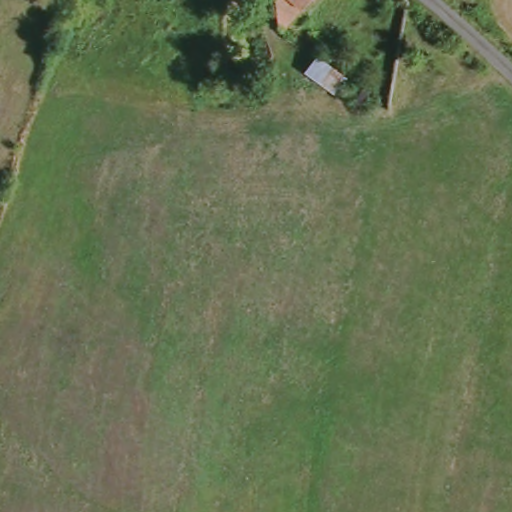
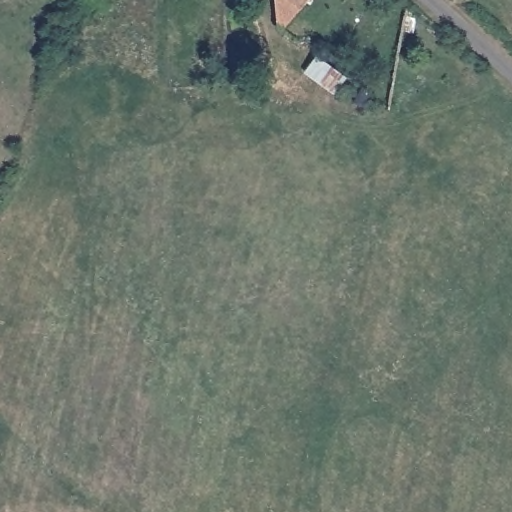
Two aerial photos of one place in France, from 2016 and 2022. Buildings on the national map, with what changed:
unchanged [(281,30),(279,3),(281,0),(314,0),(285,34),(281,30)]

